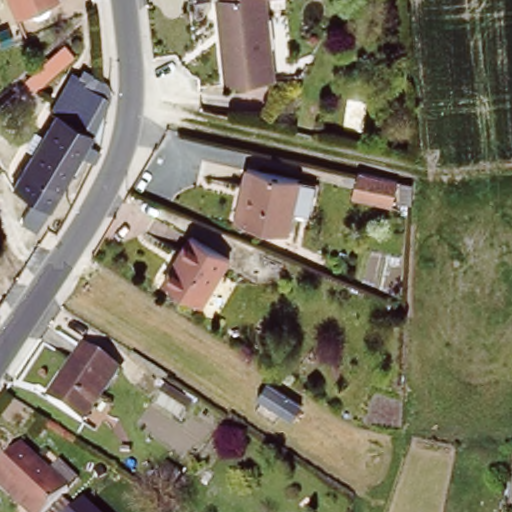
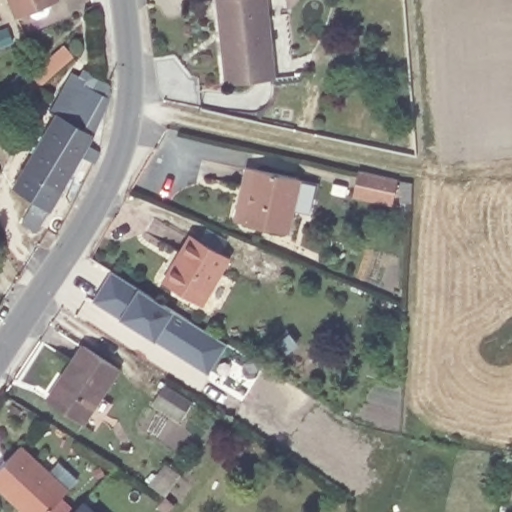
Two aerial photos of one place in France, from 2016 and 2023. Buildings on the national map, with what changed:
unchanged [(15,22),(4,0),(52,0),(53,2),(15,22)]
unchanged [(225,85),(214,1),(219,0),(218,0),(260,0),(271,80),(225,85)]
unchanged [(112,100),(88,147),(102,155),(95,168),(82,160),(62,196),(25,175),(55,119),(51,117),(72,78),(78,81),(81,77),(90,82),(93,76),(99,80),(111,86),(112,100)]
unchanged [(242,192),(247,170),(300,184),(287,236),(240,225),(235,224),(242,192)]
unchanged [(395,204),(355,195),(362,170),(402,179),(395,204)]
unchanged [(62,196),(60,201),(59,200),(37,239),(20,227),(31,209),(12,196),(25,175),(62,196)]
unchanged [(415,200),(403,199),(404,180),(417,183),(415,200)]
unchanged [(222,260),(195,305),(157,281),(185,237),(222,260)]
new [(209,372),(155,340),(121,318),(94,301),(112,271),(137,291),(139,288),(175,310),(173,312),(227,345),(209,372)]
unchanged [(84,347),(120,370),(87,424),(51,400),(84,347)]
unchanged [(47,512),(31,512),(22,503),(19,506),(0,489),(0,468),(20,447),(67,490),(47,512)]
unchanged [(96,512),(74,512),(83,501),(96,512)]

